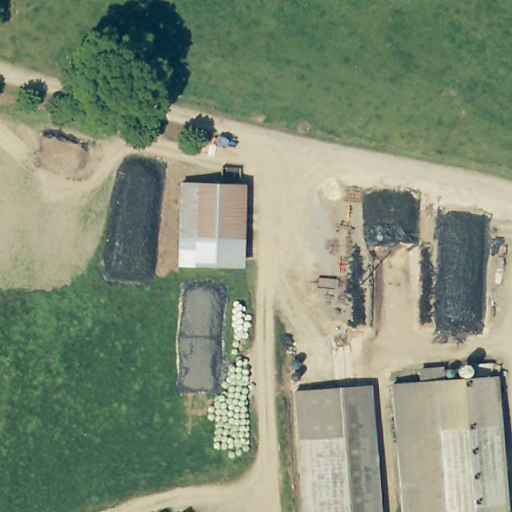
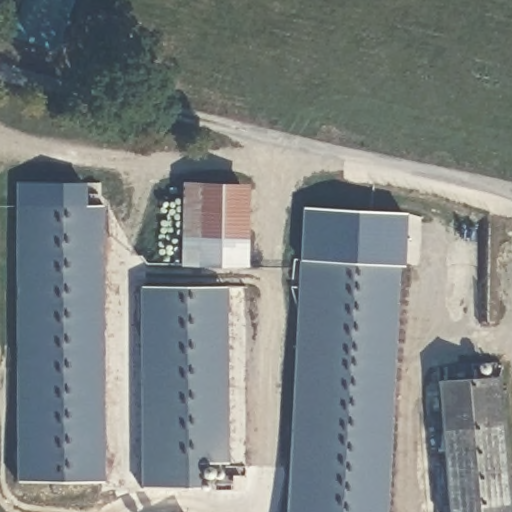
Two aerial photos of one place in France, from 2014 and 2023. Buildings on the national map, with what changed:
new [(101,481),(13,482),(18,182),(85,183),(85,205),(101,206),(101,481)]
unchanged [(237,266),(214,265),(179,263),(182,184),(240,187),(240,197),(237,266)]
new [(402,266),(396,265),(380,512),(282,512),(301,206),(403,214),(402,266)]
new [(224,288),(222,463),(195,462),(196,488),(140,487),(140,287),(224,288)]
new [(497,376),(507,512),(445,512),(434,381),(497,376)]

